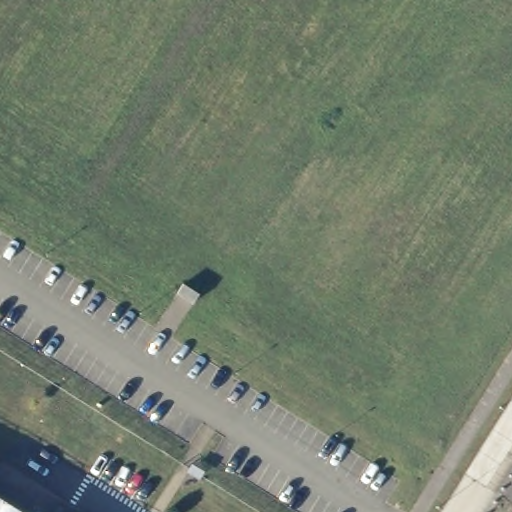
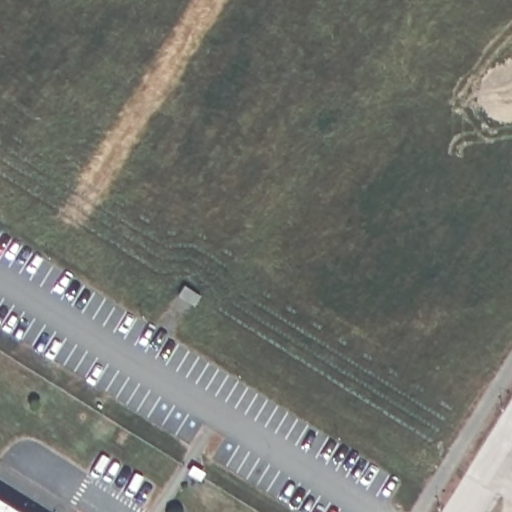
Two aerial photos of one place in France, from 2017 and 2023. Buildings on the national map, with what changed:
unchanged [(0,512),(0,494),(28,512),(0,512)]

